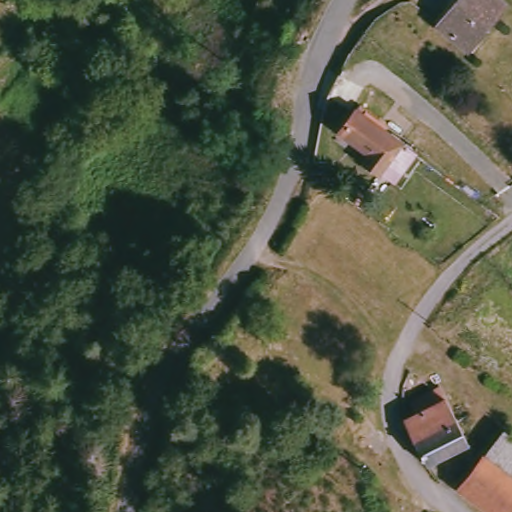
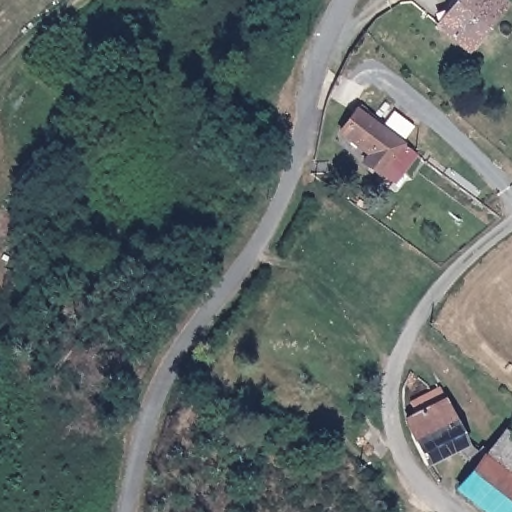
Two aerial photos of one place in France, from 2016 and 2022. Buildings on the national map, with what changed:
unchanged [(504,3),(467,54),(436,30),(458,0),(500,0),(504,3)]
unchanged [(415,147),(403,168),(390,161),(382,170),(362,156),(368,147),(339,127),(352,108),(415,147)]
unchanged [(448,401),(467,448),(428,465),(410,438),(403,421),(416,417),(412,406),(437,395),(448,401)]
unchanged [(495,512),(460,483),(501,426),(512,434),(512,512),(495,512)]

